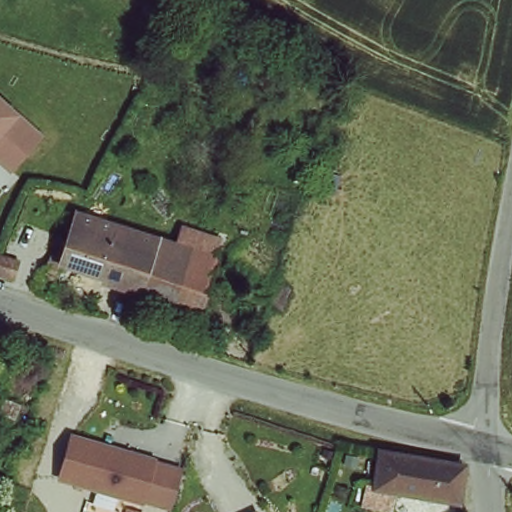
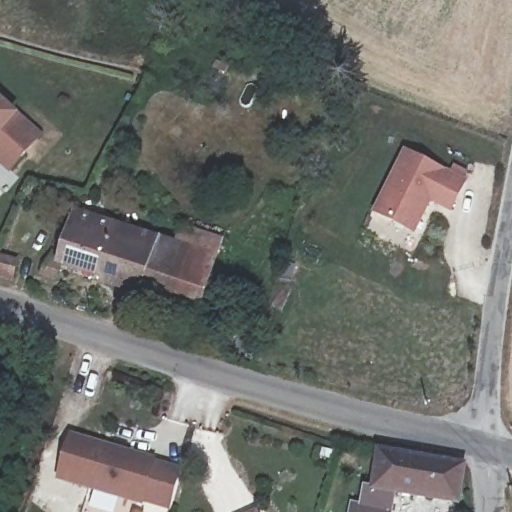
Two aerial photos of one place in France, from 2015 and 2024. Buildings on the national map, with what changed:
unchanged [(13,120),(29,134),(30,141),(23,149),(27,152),(13,171),(0,161),(0,103),(16,116),(13,120)]
new [(405,148),(467,180),(451,212),(431,202),(415,234),(373,212),(405,148)]
unchanged [(37,285),(43,262),(63,267),(79,206),(122,218),(220,247),(223,249),(216,273),(202,318),(61,276),(57,291),(37,285)]
unchanged [(14,272),(7,295),(0,293),(0,267),(4,268),(14,272)]
unchanged [(57,480),(69,439),(101,447),(99,453),(133,462),(134,458),(150,463),(138,505),(57,480)]
unchanged [(464,508),(396,503),(395,512),(363,512),(364,488),(374,491),(379,453),(469,467),(464,508)]
unchanged [(245,512),(252,509),(253,512),(245,512)]

